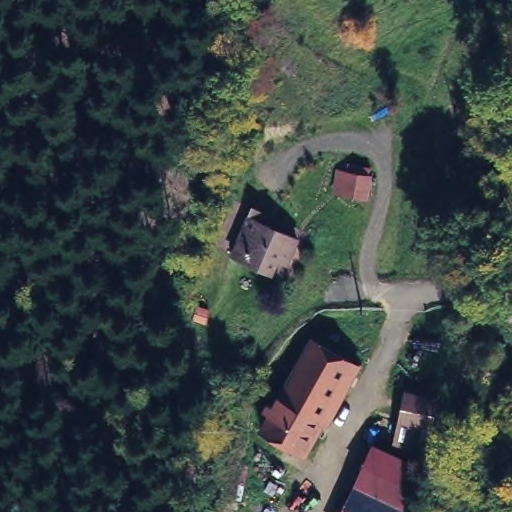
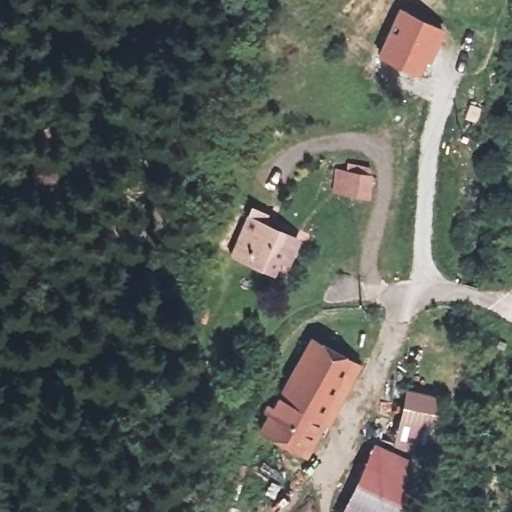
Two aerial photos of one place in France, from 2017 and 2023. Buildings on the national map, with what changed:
new [(416,75),(379,56),(400,11),(443,32),(429,64),(424,62),(416,75)]
unchanged [(336,195),(339,170),(345,171),(375,174),(372,200),(342,195),(336,195)]
unchanged [(269,219),(265,228),(301,244),(290,267),(281,263),(275,277),(234,260),(255,212),(269,219)]
unchanged [(365,370),(357,365),(304,458),(262,435),(272,417),(265,414),(270,407),(276,411),(316,339),(367,367),(365,370)]
unchanged [(425,452),(422,452),(392,445),(402,398),(405,385),(420,386),(437,391),(437,406),(425,452)]
unchanged [(358,481),(377,443),(424,466),(408,505),(358,481)]
unchanged [(358,481),(408,505),(404,512),(343,512),(358,481)]

